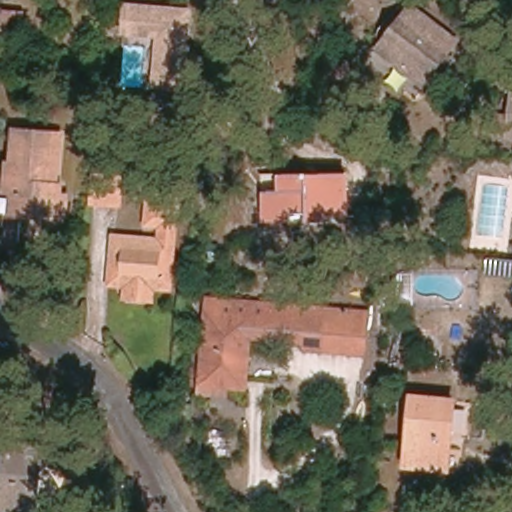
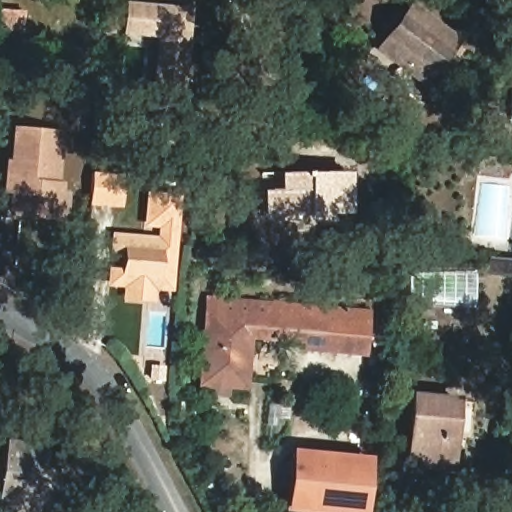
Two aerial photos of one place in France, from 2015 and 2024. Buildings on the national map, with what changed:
unchanged [(194,9),(187,86),(159,84),(164,34),(129,31),(132,4),(194,9)]
unchanged [(428,84),(393,55),(384,48),(414,10),(423,17),(459,46),(428,84)]
unchanged [(11,13),(36,14),(34,34),(9,32),(11,13)]
unchanged [(496,135),(497,115),(512,117),(512,137),(496,135)]
unchanged [(60,216),(20,214),(20,193),(13,192),(4,192),(5,162),(14,162),(15,133),(59,135),(57,185),(61,185),(61,198),(60,216)]
unchanged [(133,178),(130,210),(101,207),(104,175),(133,178)]
unchanged [(282,200),(283,182),(349,182),(350,218),(268,218),(268,200),(282,200)]
unchanged [(102,249),(103,234),(150,239),(151,223),(144,223),(136,216),(138,193),(166,195),(161,288),(113,284),(100,283),(102,249)]
unchanged [(204,400),(205,390),(212,301),(285,307),(309,309),(305,343),(282,342),(254,340),(249,393),(230,392),(230,402),(204,400)]
unchanged [(367,314),(365,355),(305,351),(305,343),(309,309),(367,314)]
unchanged [(459,399),(453,465),(408,461),(413,395),(459,399)]
unchanged [(38,512),(3,512),(13,440),(48,445),(38,512)]
new [(366,512),(290,512),(285,511),(291,448),(372,456),(366,512)]

